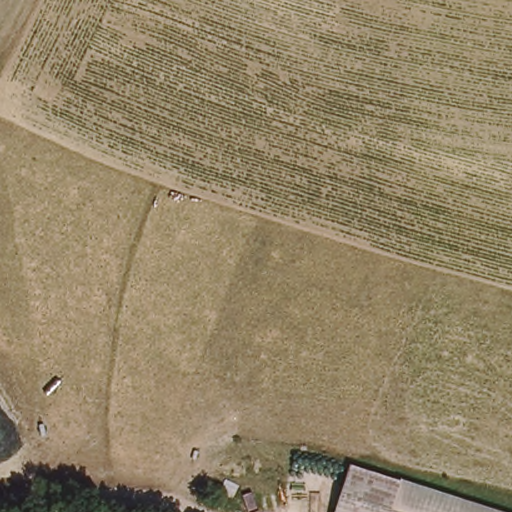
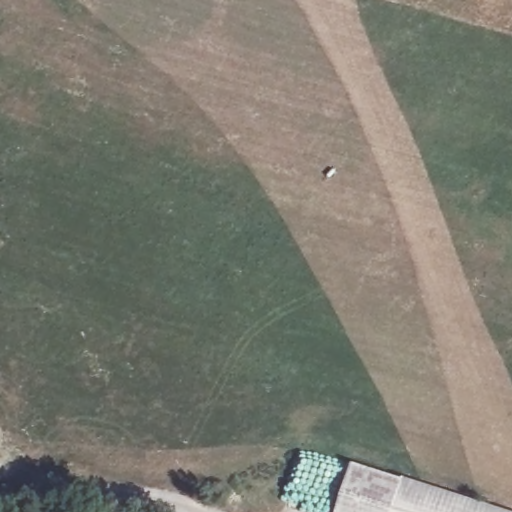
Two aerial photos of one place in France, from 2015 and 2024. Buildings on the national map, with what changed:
unchanged [(487,512),(337,512),(353,463),(487,512)]

